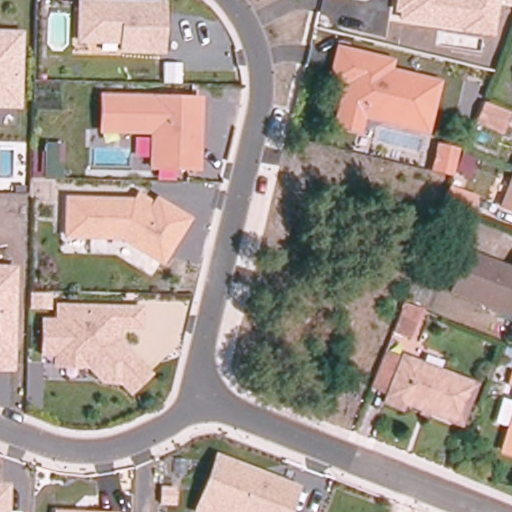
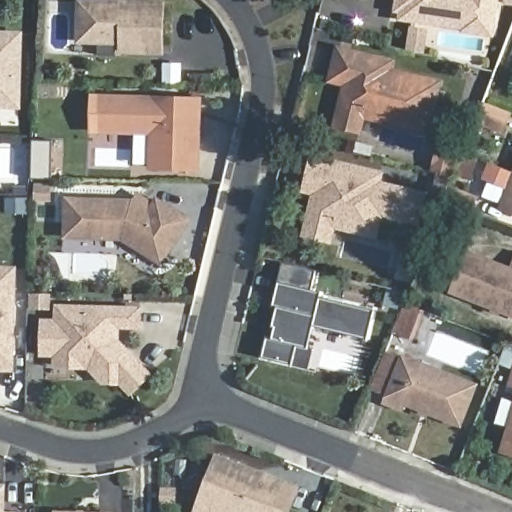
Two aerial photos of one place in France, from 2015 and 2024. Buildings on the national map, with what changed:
unchanged [(162,52),(123,51),(123,41),(96,40),(81,22),(82,0),(92,0),(161,3),(162,52)]
unchanged [(494,37),(461,32),(461,29),(398,21),(399,13),(393,12),(394,0),(499,0),(494,37)]
unchanged [(21,109),(0,108),(0,30),(23,30),(21,109)]
unchanged [(442,80),(429,134),(365,118),(362,137),(331,130),(340,86),(326,83),(335,43),(394,57),(391,68),(442,80)]
unchanged [(196,168),(151,167),(151,131),(101,130),(102,96),(199,100),(196,168)]
unchanged [(477,119),(484,101),(510,111),(503,130),(477,119)]
new [(31,139),(53,140),(51,205),(30,204),(29,212),(5,212),(5,197),(30,198),(31,139)]
new [(430,191),(421,227),(383,219),(380,238),(337,229),(333,243),(302,236),(311,194),(302,192),(311,156),(386,172),(383,181),(430,191)]
unchanged [(464,157),(477,162),(473,173),(460,167),(464,157)]
unchanged [(502,206),(512,182),(512,210),(502,206)]
unchanged [(469,214),(444,204),(450,186),(476,196),(469,214)]
unchanged [(136,189),(152,199),(156,194),(194,217),(163,267),(119,239),(64,238),(64,195),(133,196),(136,189)]
unchanged [(449,291),(464,253),(508,270),(512,259),(512,316),(449,291)]
new [(284,261),(316,269),(312,288),(376,304),(367,338),(313,325),(308,347),(313,348),(309,368),(264,357),(276,305),(284,261)]
unchanged [(15,371),(0,371),(0,265),(18,265),(15,371)]
new [(425,309),(413,339),(393,331),(405,301),(425,309)]
unchanged [(141,329),(120,329),(120,339),(154,375),(127,396),(116,384),(101,385),(86,369),(79,369),(51,370),(51,356),(41,356),(41,318),(53,318),(54,302),(143,305),(141,329)]
unchanged [(510,342),(512,344),(512,367),(512,368),(501,364),(510,342)]
unchanged [(389,395),(371,388),(386,350),(404,357),(476,385),(461,424),(405,402),(403,408),(387,402),(389,395)]
unchanged [(511,383),(512,380),(512,383),(511,383)]
unchanged [(503,451),(511,426),(497,422),(504,397),(512,400),(512,454),(503,451)]
unchanged [(191,512),(214,452),(300,485),(290,512),(191,512)]
unchanged [(21,509),(21,512),(0,512),(0,487),(5,487),(6,508),(21,509)]
unchanged [(86,512),(54,512),(55,510),(86,512)]

